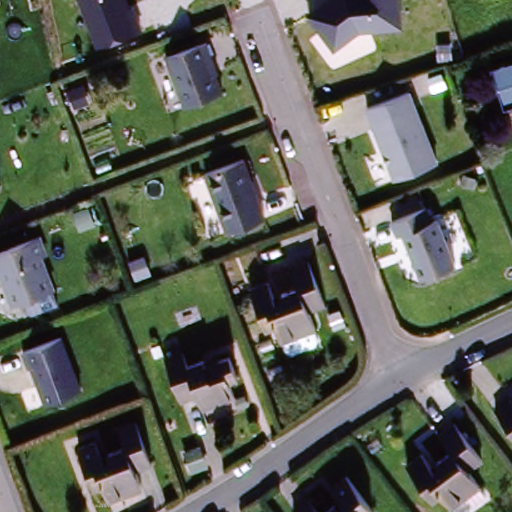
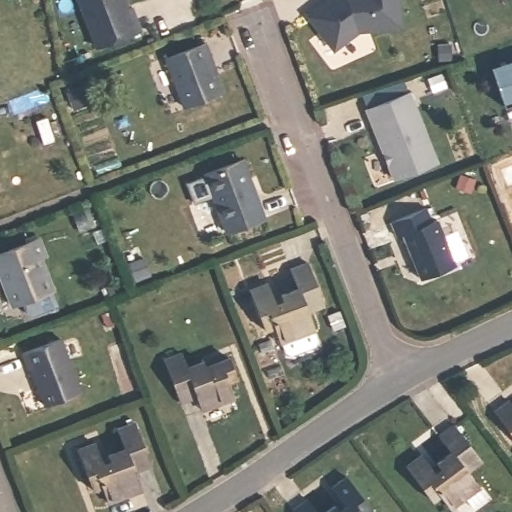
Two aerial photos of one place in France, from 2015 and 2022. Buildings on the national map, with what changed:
unchanged [(76,0),(127,0),(140,31),(95,48),(76,0)]
unchanged [(400,29),(358,33),(333,53),(305,14),(323,0),(398,0),(400,29)]
unchanged [(184,110),(163,60),(205,45),(210,60),(217,76),(213,78),(221,95),(184,110)]
unchanged [(512,63),(512,104),(507,105),(495,68),(512,63)]
unchanged [(366,108),(408,92),(435,160),(393,177),(366,108)]
unchanged [(260,219),(224,233),(210,197),(201,175),(237,161),(260,219)]
unchanged [(434,221),(452,266),(418,280),(400,235),(395,237),(389,223),(423,209),(428,223),(434,221)]
unchanged [(0,292),(0,254),(32,241),(40,258),(35,260),(47,292),(6,308),(0,292)]
unchanged [(276,327),(263,332),(250,295),(262,290),(267,301),(300,290),(293,272),(309,266),(326,309),(310,315),(316,332),(284,345),(276,327)]
unchanged [(45,407),(22,355),(59,340),(80,394),(45,407)]
unchanged [(225,364),(235,360),(243,379),(231,384),(235,396),(205,410),(196,388),(182,393),(168,353),(183,348),(190,368),(222,356),(225,364)]
unchanged [(512,403),(512,437),(491,404),(507,395),(512,403)]
unchanged [(76,455),(90,450),(93,460),(127,447),(121,430),(137,424),(153,465),(136,472),(143,490),(110,503),(105,489),(90,494),(76,455)]
unchanged [(455,508),(443,491),(432,498),(410,466),(421,457),(430,469),(456,450),(446,437),(460,427),(485,462),(470,474),(481,489),(455,508)]
unchanged [(343,485),(354,478),(375,509),(371,512),(324,512),(350,494),(343,485)]
unchanged [(310,500),(318,512),(297,512),(296,510),(310,500)]

